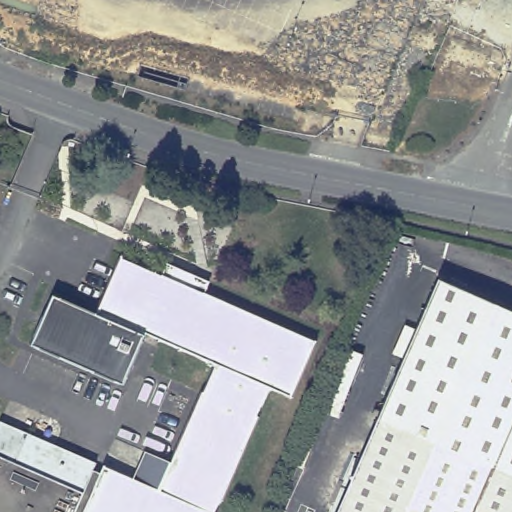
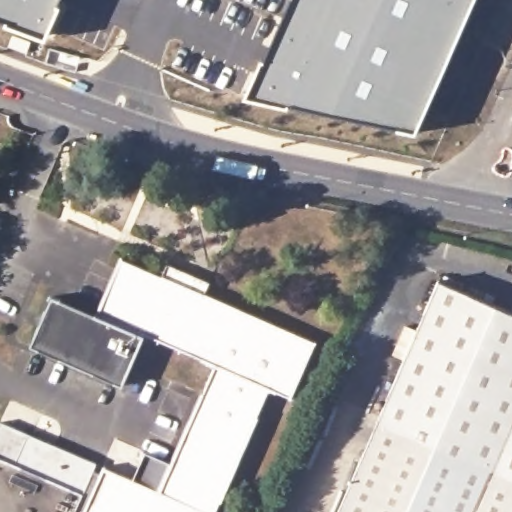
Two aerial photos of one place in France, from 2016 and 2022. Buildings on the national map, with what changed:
new [(43,39),(0,23),(0,0),(60,0),(43,39)]
new [(285,0),(474,0),(415,132),(242,97),(285,0)]
demolished [(473,4),(475,0),(512,0),(512,17),(511,20),(509,20),(502,16),(473,4)]
demolished [(500,42),(509,47),(502,65),(493,60),(480,91),(458,81),(462,75),(435,64),(452,22),(492,39),(500,42)]
unchanged [(220,370),(149,340),(127,390),(36,350),(57,300),(101,318),(125,263),(167,280),(170,275),(212,292),(209,298),(320,346),(295,402),(275,394),(222,512),(0,512),(0,438),(5,426),(100,467),(97,472),(105,476),(107,471),(136,484),(147,455),(176,468),(220,370)]
unchanged [(442,285),(512,315),(512,512),(343,512),(372,444),(442,285)]

